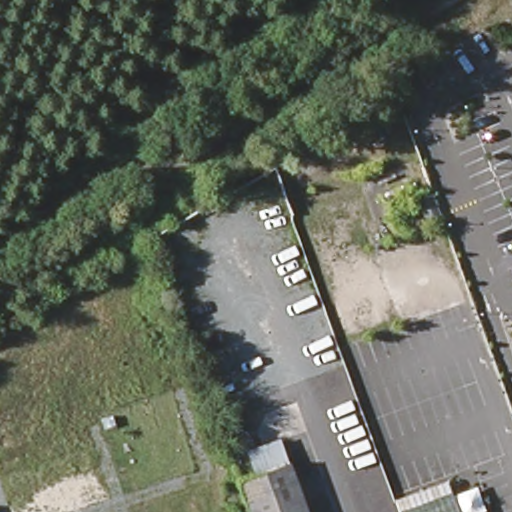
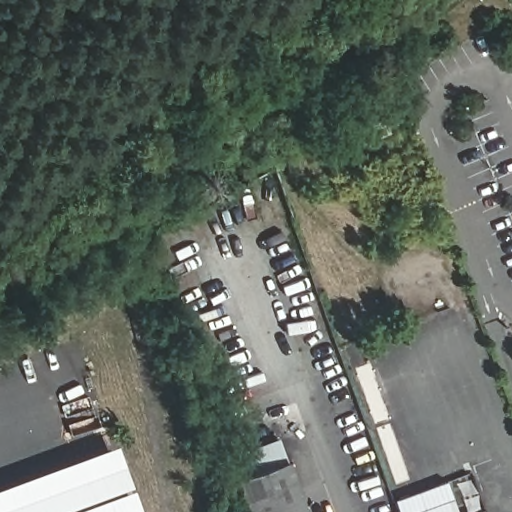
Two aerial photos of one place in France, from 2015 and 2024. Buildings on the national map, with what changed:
new [(0,488),(115,446),(140,512),(0,512),(0,488)]
unchanged [(289,450),(311,512),(257,512),(241,467),(289,450)]
unchanged [(392,502),(446,482),(457,512),(395,512),(392,502)]

